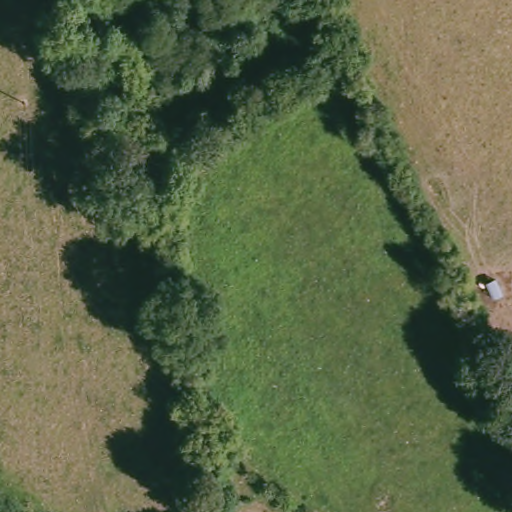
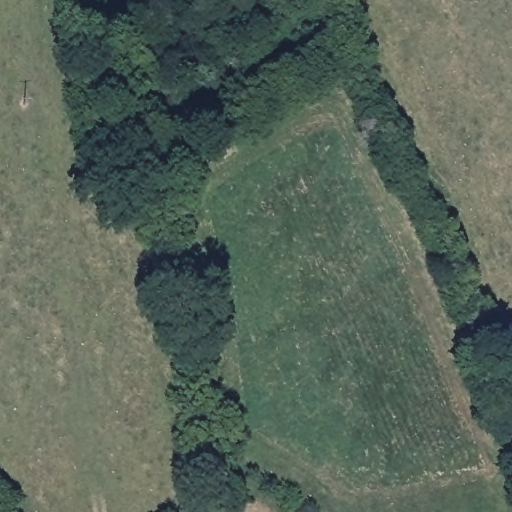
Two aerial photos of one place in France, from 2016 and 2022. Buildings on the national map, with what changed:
[]

